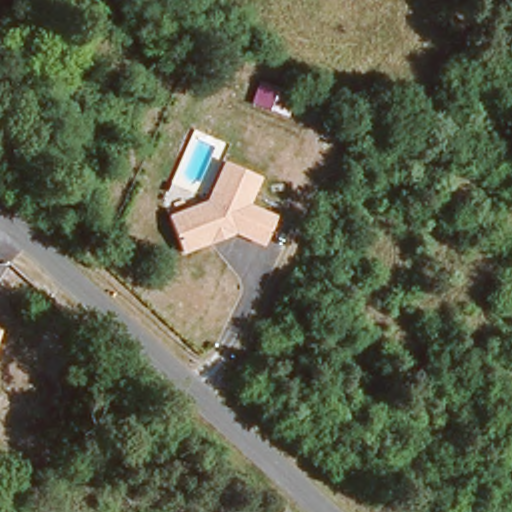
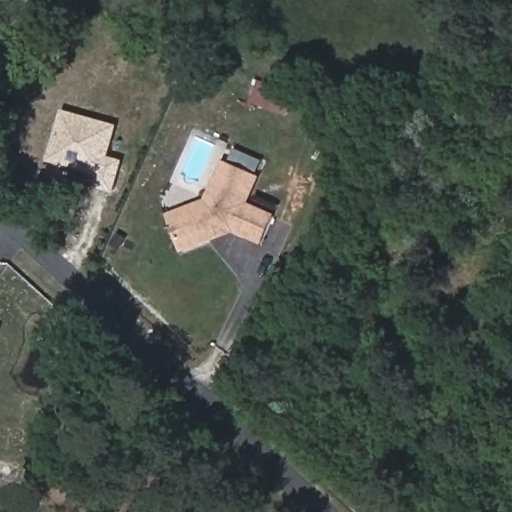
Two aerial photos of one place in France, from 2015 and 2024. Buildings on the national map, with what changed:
new [(118,126),(109,157),(124,161),(116,191),(99,187),(100,175),(47,162),(61,110),(118,126)]
unchanged [(168,213),(203,198),(220,158),(260,175),(249,202),(274,212),(260,244),(230,231),(181,251),(168,213)]
demolished [(119,246),(96,235),(102,223),(125,234),(119,246)]
unchanged [(2,329),(0,336),(0,329),(2,329)]

